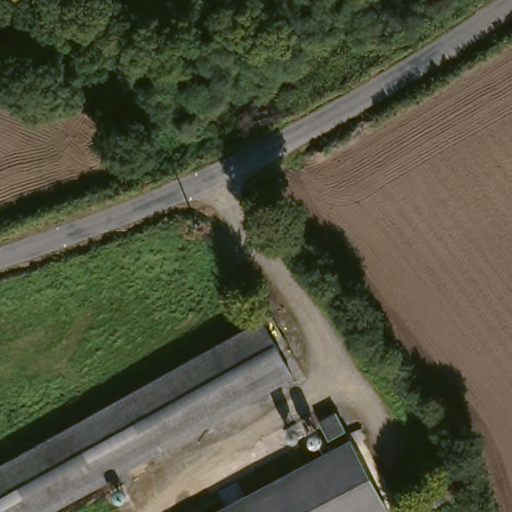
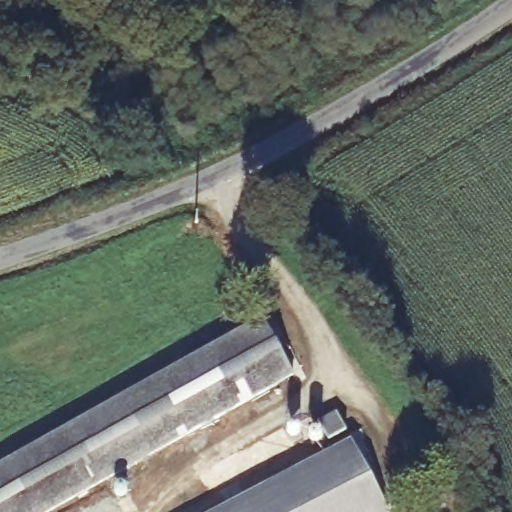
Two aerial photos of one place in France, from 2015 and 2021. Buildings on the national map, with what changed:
unchanged [(284,386),(47,512),(0,512),(0,460),(251,328),(284,386)]
unchanged [(331,406),(341,426),(323,437),(312,417),(331,406)]
unchanged [(385,505),(372,512),(210,512),(350,437),(385,505)]

